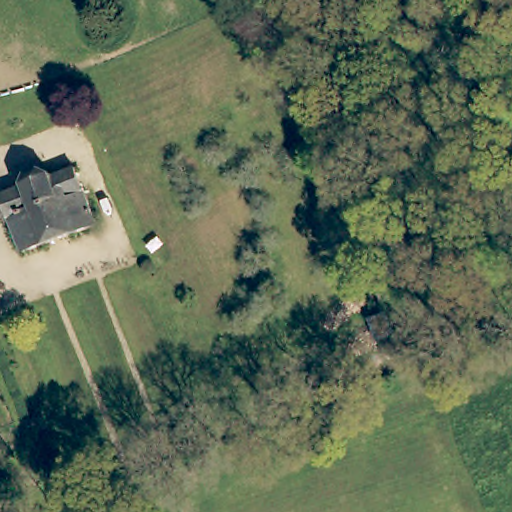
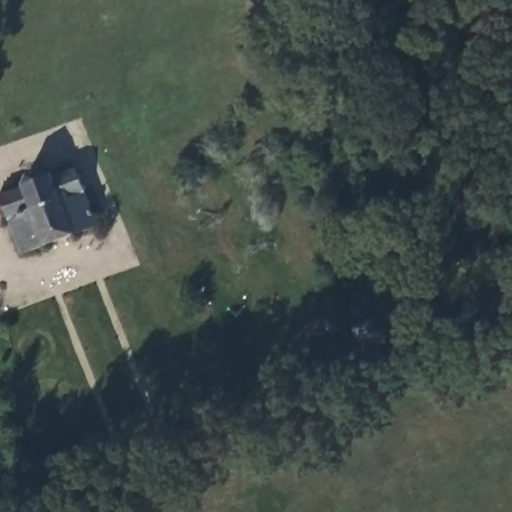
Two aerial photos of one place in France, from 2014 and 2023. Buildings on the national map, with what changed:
unchanged [(98,229),(22,257),(1,202),(24,194),(26,181),(48,174),(57,181),(77,174),(98,229)]

